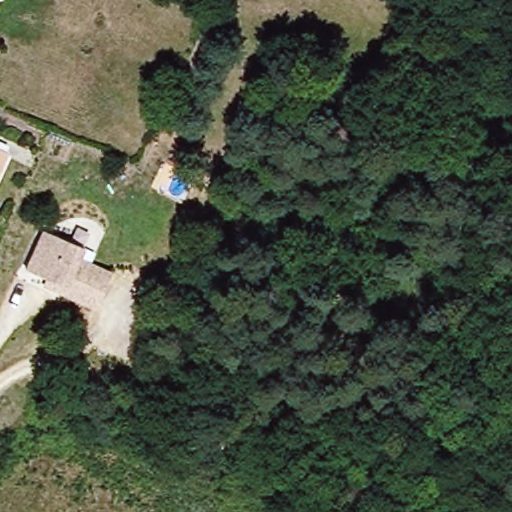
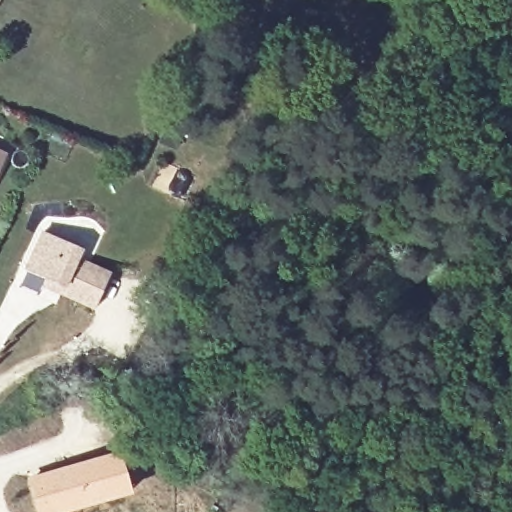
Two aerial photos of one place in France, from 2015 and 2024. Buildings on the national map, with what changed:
unchanged [(0,176),(0,148),(10,153),(0,176)]
unchanged [(42,282),(21,273),(40,235),(79,252),(75,263),(106,278),(91,311),(56,296),(40,289),(42,282)]
new [(134,494),(69,512),(38,512),(27,477),(121,450),(134,494)]

